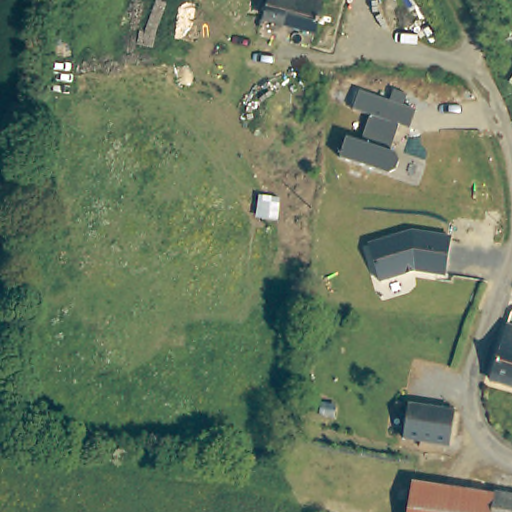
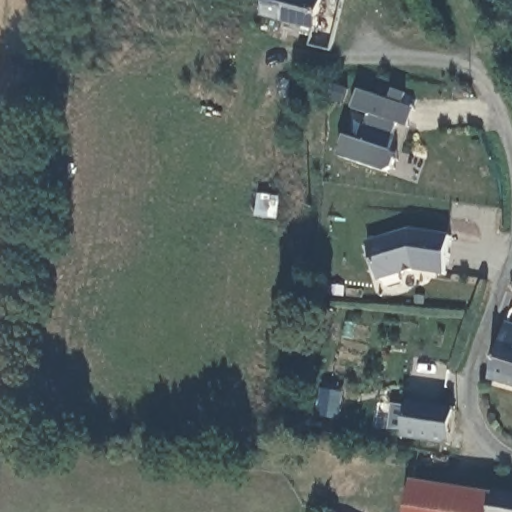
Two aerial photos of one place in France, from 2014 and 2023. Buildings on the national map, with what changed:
unchanged [(322,3),(315,32),(262,17),(267,0),(312,0),(317,2),(322,3)]
unchanged [(512,74),(512,80),(509,78),(512,74)]
unchanged [(361,141),(370,114),(352,108),(358,92),(386,102),(390,90),(405,95),(402,106),(415,111),(410,128),(399,125),(390,149),(398,160),(395,171),(385,175),(339,158),(347,138),(361,141)]
unchanged [(411,230),(453,237),(445,276),(414,269),(381,281),(368,243),(411,230)]
unchanged [(491,381),(508,327),(512,328),(512,386),(491,381)]
unchanged [(410,406),(455,414),(450,447),(405,440),(410,406)]
unchanged [(490,492),(495,494),(493,502),(488,502),(480,500),(478,512),(408,512),(413,480),(490,492)]
unchanged [(495,494),(496,490),(512,493),(512,512),(491,512),(493,502),(495,494)]

